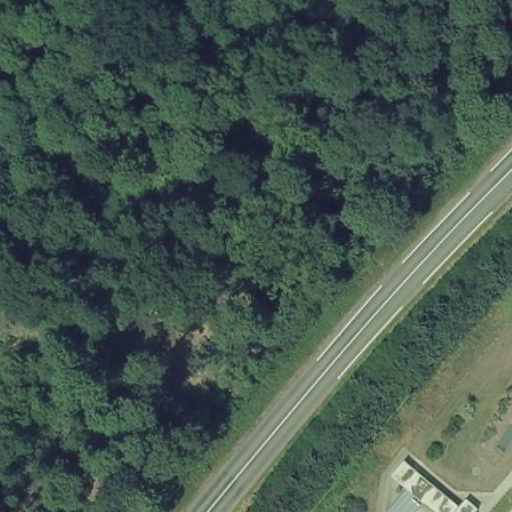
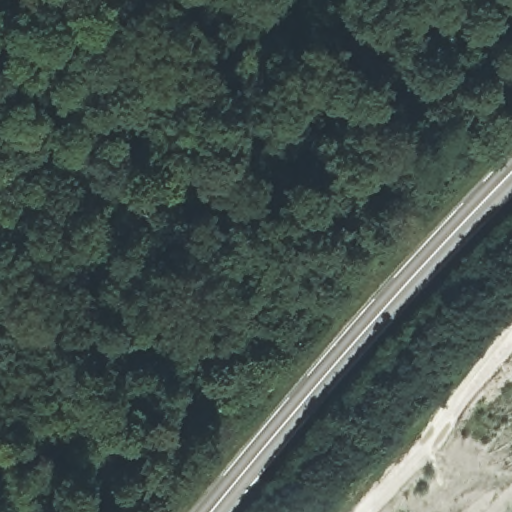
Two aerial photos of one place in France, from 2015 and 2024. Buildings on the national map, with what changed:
unchanged [(409,487),(398,477),(414,460),(474,512),(390,512),(390,511),(409,487)]

